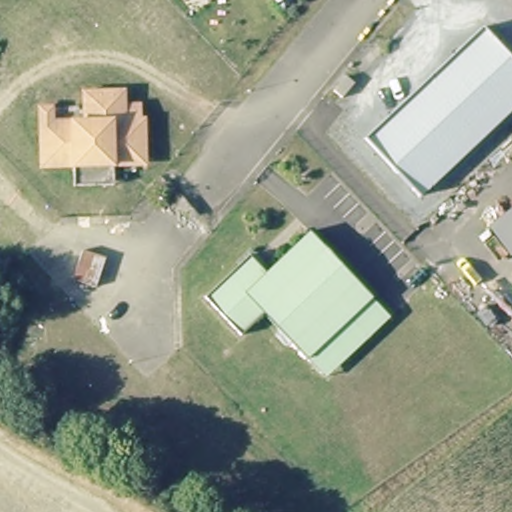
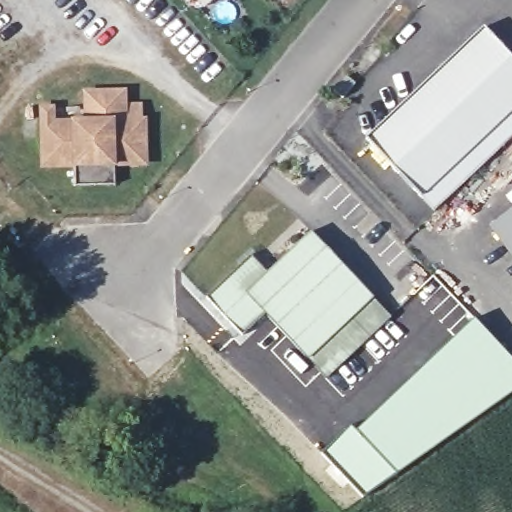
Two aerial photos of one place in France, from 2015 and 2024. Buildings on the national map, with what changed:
unchanged [(369,139),(485,28),(512,56),(512,114),(424,197),(369,139)]
unchanged [(338,102),(328,92),(341,79),(351,89),(338,102)]
unchanged [(78,187),(76,168),(52,170),(44,162),(40,111),(49,110),(50,125),(86,122),(84,93),(124,91),(125,105),(140,104),(141,118),(145,118),(148,156),(141,164),(116,165),(118,185),(78,187)]
unchanged [(487,227),(512,207),(512,252),(509,254),(487,227)]
unchanged [(371,296),(370,297),(339,328),(308,358),(307,360),(263,315),(241,337),(204,300),(248,257),(265,274),(308,232),(371,296)]
unchanged [(388,315),(325,377),(308,358),(339,328),(370,297),(388,315)]
new [(356,430),(474,318),(512,359),(512,392),(364,496),(324,452),(351,425),(356,430)]

